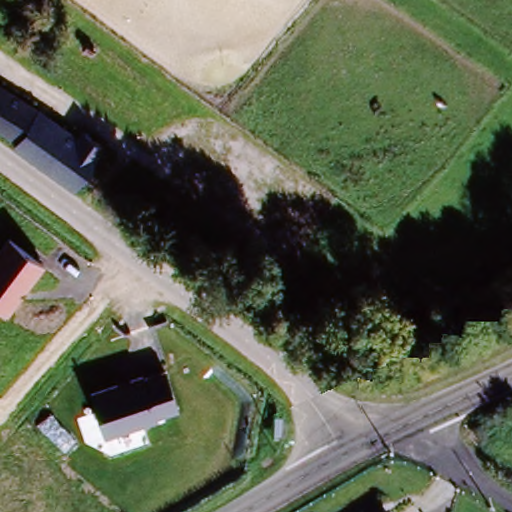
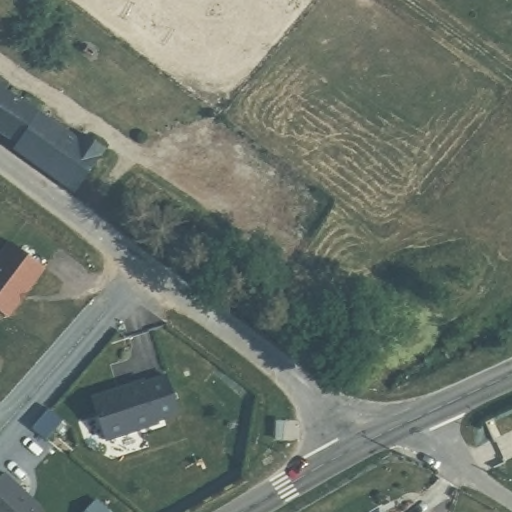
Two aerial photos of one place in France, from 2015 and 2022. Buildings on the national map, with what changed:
unchanged [(0,85),(76,138),(81,131),(102,146),(70,184),(17,147),(22,142),(0,127),(0,85)]
unchanged [(45,268),(7,320),(0,313),(0,257),(12,242),(45,268)]
unchanged [(165,374),(178,415),(105,441),(93,395),(165,374)]
new [(42,511),(40,512),(0,512),(0,472),(4,468),(42,503),(42,511)]

